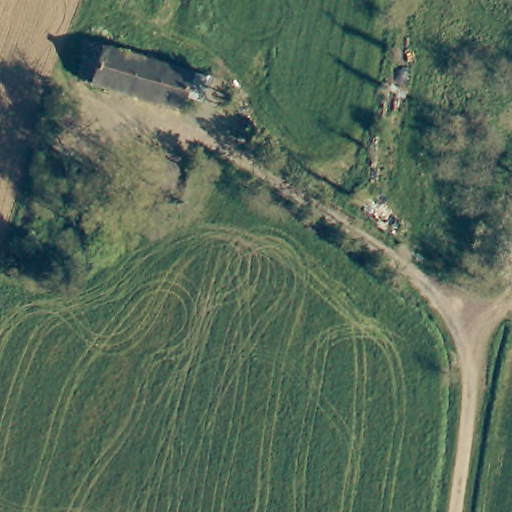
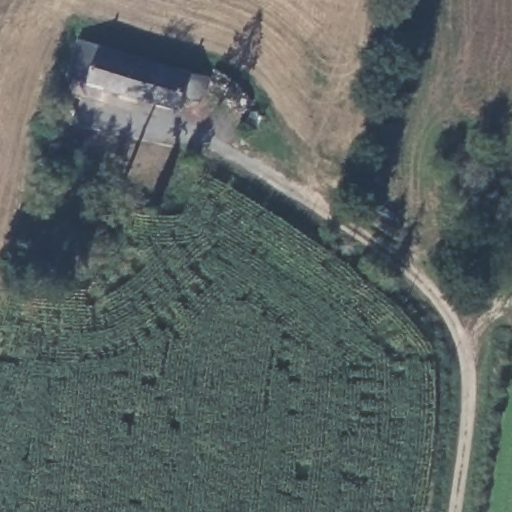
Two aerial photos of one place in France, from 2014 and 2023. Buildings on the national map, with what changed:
unchanged [(82,87),(85,72),(90,50),(213,79),(207,102),(192,98),(189,111),(82,87)]

